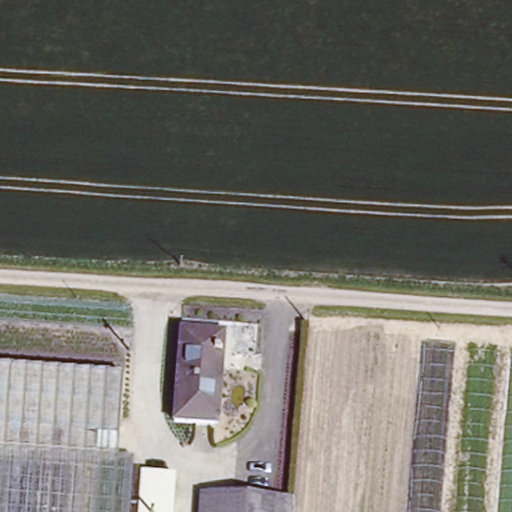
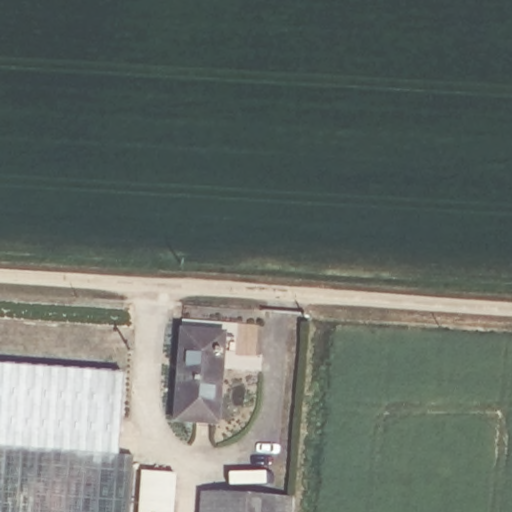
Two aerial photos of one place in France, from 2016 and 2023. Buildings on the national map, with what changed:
unchanged [(213,423),(175,420),(181,330),(220,333),(213,423)]
unchanged [(121,377),(115,458),(132,459),(128,512),(0,512),(0,368),(121,377)]
unchanged [(141,512),(144,480),(175,484),(173,512),(141,512)]
unchanged [(200,512),(202,490),(222,491),(220,512),(200,512)]
unchanged [(271,496),(271,495),(296,497),(295,512),(220,512),(222,491),(271,496)]

